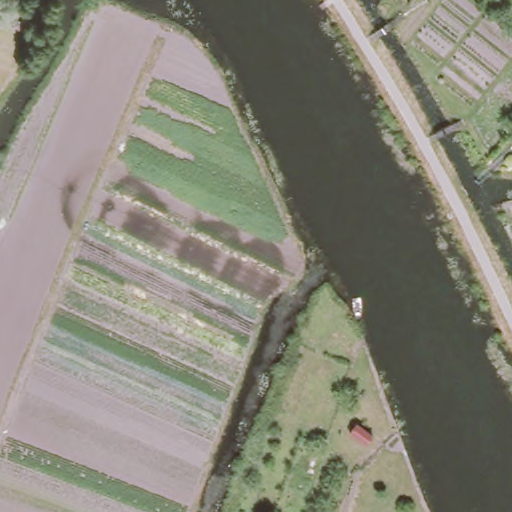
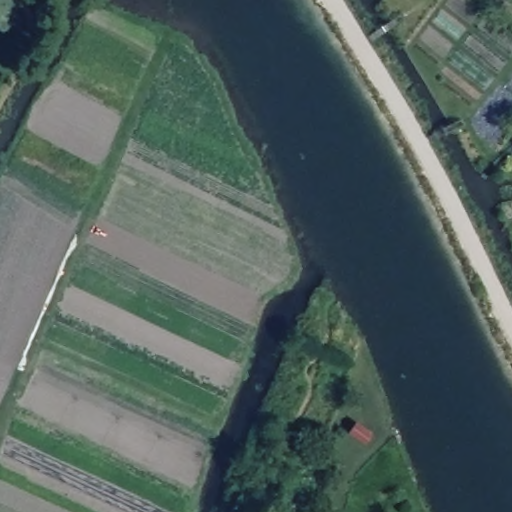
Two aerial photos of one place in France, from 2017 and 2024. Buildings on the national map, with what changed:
unchanged [(371,437),(363,446),(348,434),(356,424),(371,437)]

